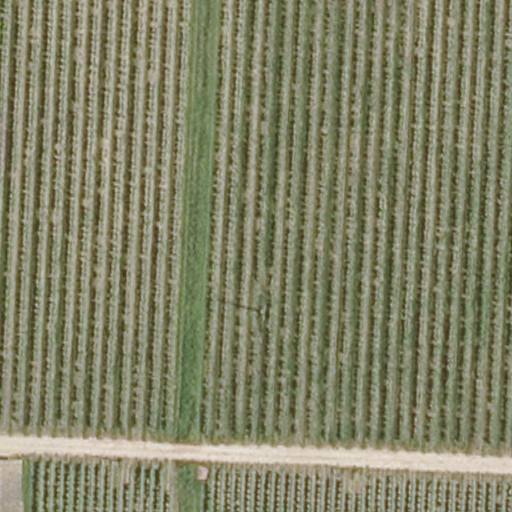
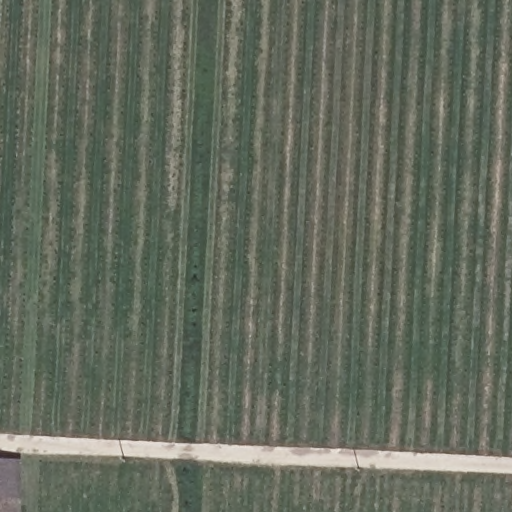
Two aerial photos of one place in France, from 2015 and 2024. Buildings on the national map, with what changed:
unchanged [(19,512),(0,512),(0,456),(21,457),(19,512)]

